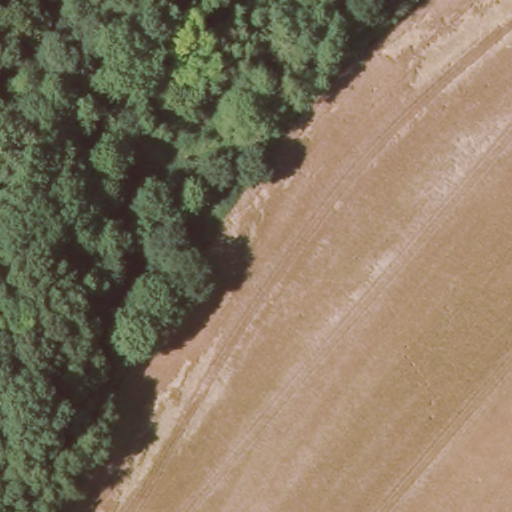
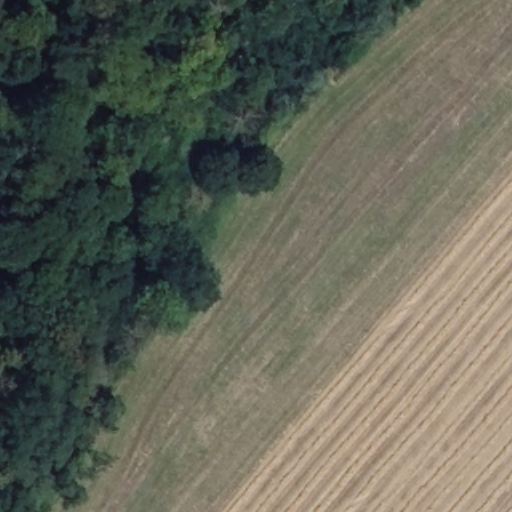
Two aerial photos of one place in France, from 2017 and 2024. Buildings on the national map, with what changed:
unchanged [(42,44),(16,73),(2,60),(27,33),(42,44)]

